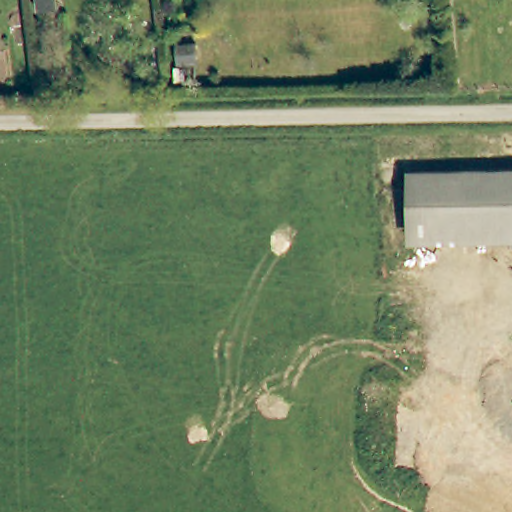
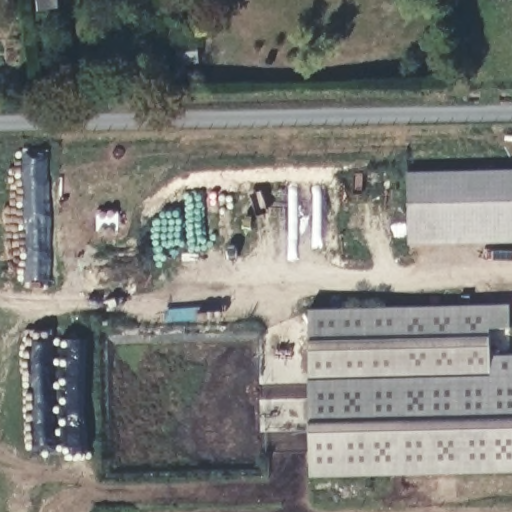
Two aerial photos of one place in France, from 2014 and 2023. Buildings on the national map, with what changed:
unchanged [(35,11),(34,0),(56,0),(57,9),(35,11)]
unchanged [(412,176),(512,176),(512,237),(412,239),(412,176)]
new [(308,381),(311,381),(308,311),(510,305),(510,328),(490,328),(490,352),(501,351),(501,356),(512,356),(512,472),(312,477),(308,381)]

